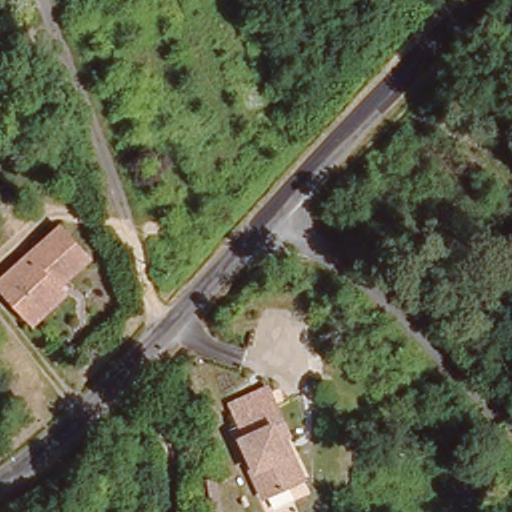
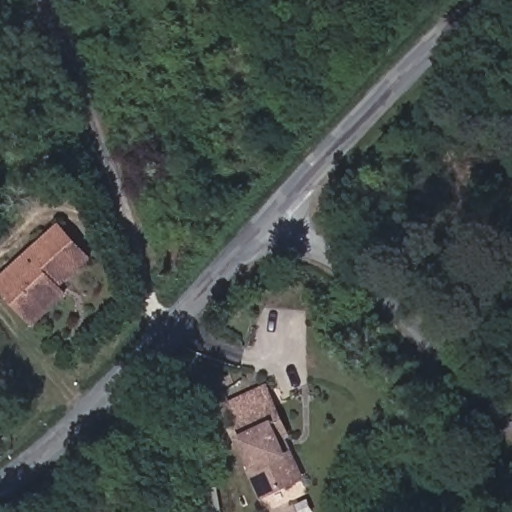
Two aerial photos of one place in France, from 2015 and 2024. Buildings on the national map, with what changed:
unchanged [(26,253),(56,223),(87,252),(59,284),(65,291),(34,319),(5,290),(0,285),(0,280),(26,253)]
unchanged [(269,386),(286,419),(276,424),(291,453),(287,455),(299,479),(266,495),(254,468),(258,467),(244,437),(249,435),(234,402),(269,386)]

